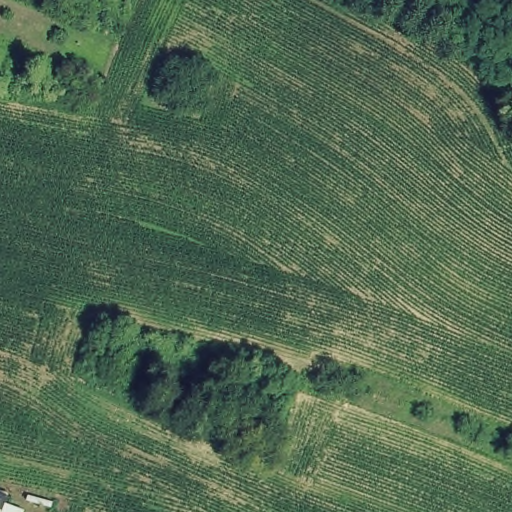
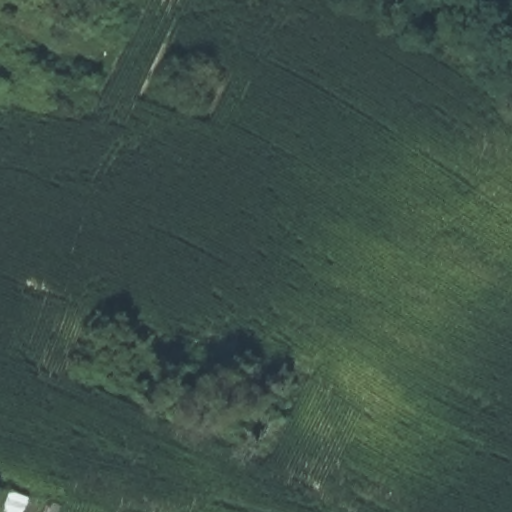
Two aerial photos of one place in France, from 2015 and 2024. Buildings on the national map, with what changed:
unchanged [(37,512),(23,510),(22,512),(0,512),(0,489),(48,500),(45,512),(37,512)]

